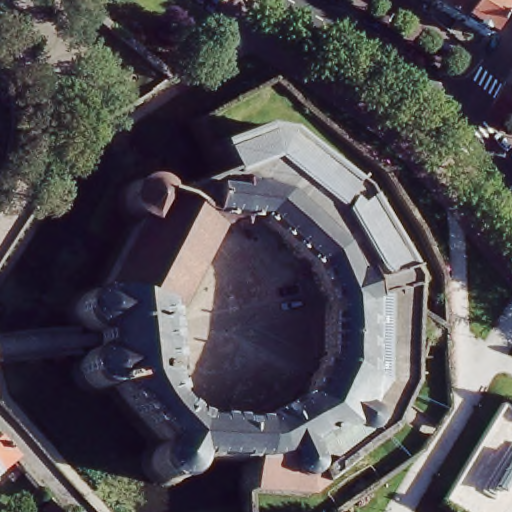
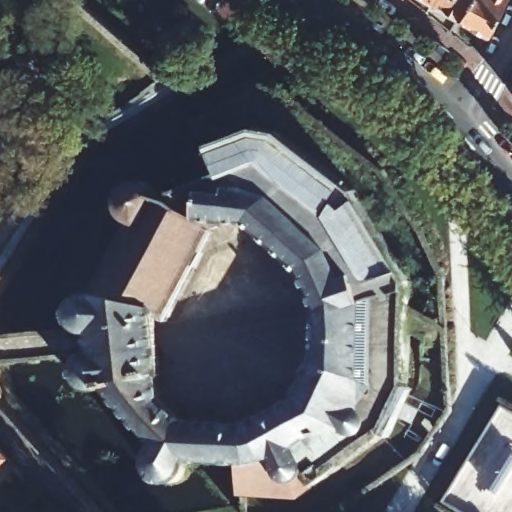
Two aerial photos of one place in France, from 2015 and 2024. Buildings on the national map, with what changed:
unchanged [(428,9),(412,0),(433,0),(428,9)]
unchanged [(433,0),(469,0),(456,23),(428,9),(433,0)]
unchanged [(469,0),(504,0),(485,38),(456,23),(469,0)]
unchanged [(385,172),(446,276),(451,404),(419,455),(338,512),(246,512),(244,492),(242,463),(192,466),(188,475),(186,478),(179,483),(171,486),(162,486),(156,484),(147,479),(142,470),(140,460),(141,450),(146,443),(150,439),(107,392),(97,394),(86,391),(80,387),(75,380),(72,370),(75,359),(80,351),(94,350),(92,333),(77,334),(70,325),(68,318),(67,310),(70,304),(75,296),(78,294),(85,290),(94,290),(128,224),(121,217),(118,210),(117,203),(120,190),(125,186),(132,181),(140,179),(147,180),(156,183),(164,193),(219,170),(209,146),(195,121),(271,79),(385,172)]
unchanged [(11,460),(10,461),(0,470),(0,447),(11,460)]
unchanged [(43,512),(50,505),(56,512),(43,512)]

